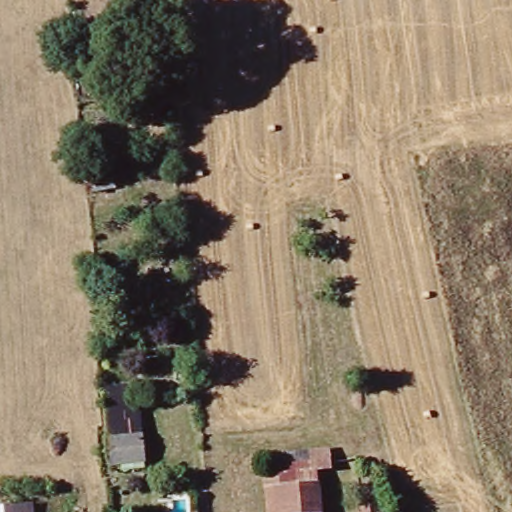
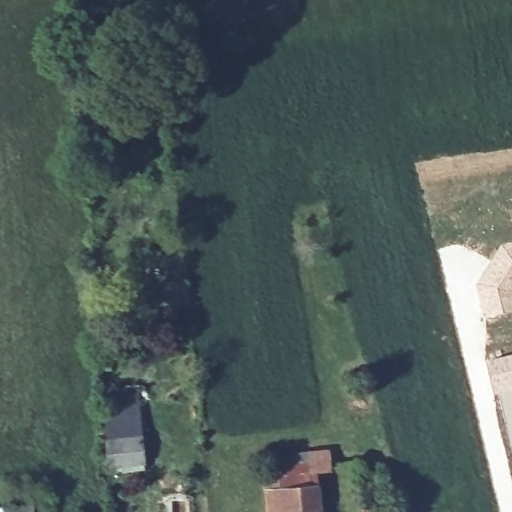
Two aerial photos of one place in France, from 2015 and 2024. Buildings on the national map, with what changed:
new [(489,262),(502,244),(512,241),(512,312),(484,318),(476,283),(489,262)]
new [(512,354),(512,389),(495,393),(487,360),(512,354)]
unchanged [(138,386),(145,464),(109,468),(103,390),(138,386)]
unchanged [(328,449),(333,470),(320,471),(325,512),(265,512),(260,459),(328,449)]
unchanged [(402,475),(404,503),(382,506),(379,477),(402,475)]

